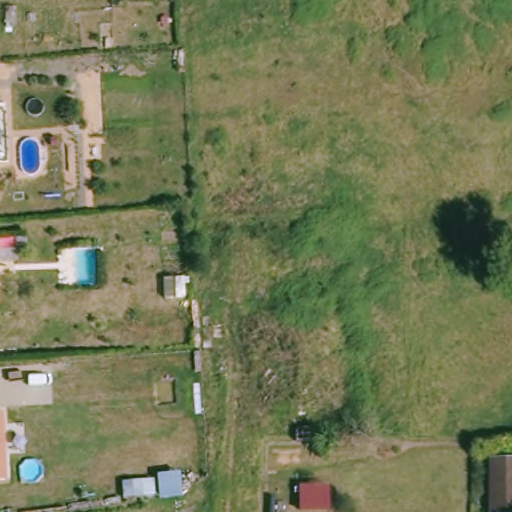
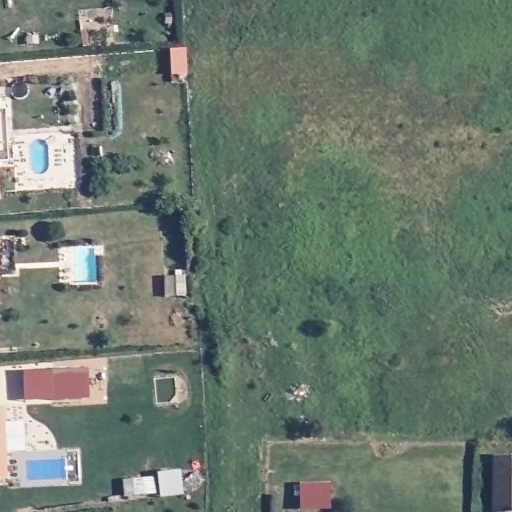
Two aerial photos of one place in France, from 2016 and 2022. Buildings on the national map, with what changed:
new [(25,401),(24,373),(87,371),(88,400),(25,401)]
unchanged [(6,480),(0,480),(0,412),(2,412),(6,480)]
unchanged [(487,459),(512,459),(512,509),(487,509),(487,459)]
unchanged [(114,484),(132,484),(132,499),(114,500),(114,484)]

